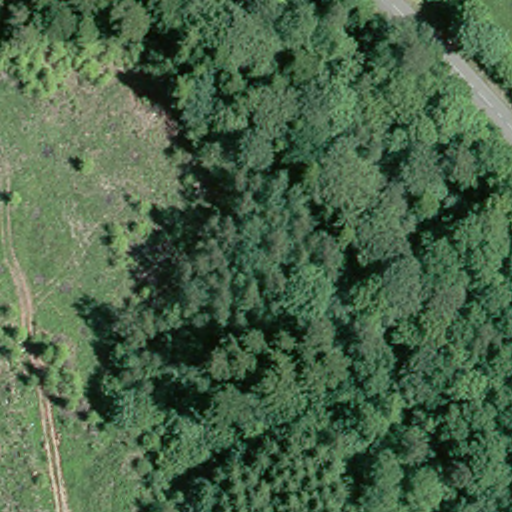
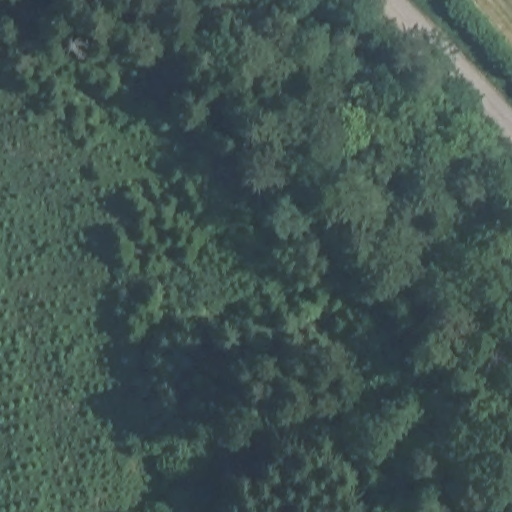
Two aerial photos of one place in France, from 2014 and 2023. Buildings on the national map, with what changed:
[]

